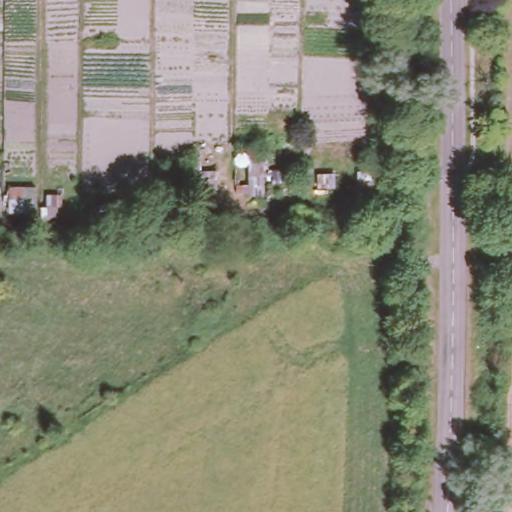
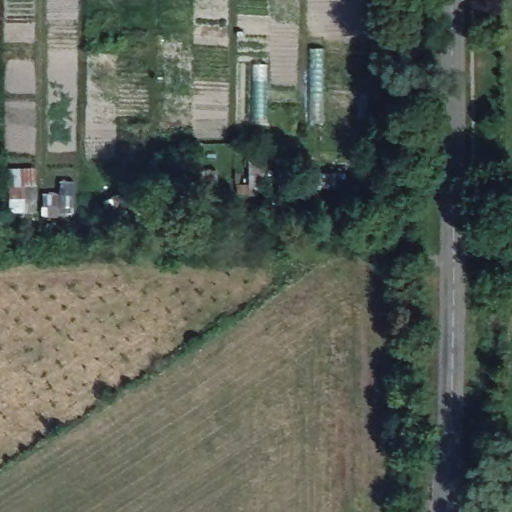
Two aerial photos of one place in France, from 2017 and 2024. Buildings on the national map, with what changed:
unchanged [(42,185),(41,214),(10,215),(10,185),(42,185)]

